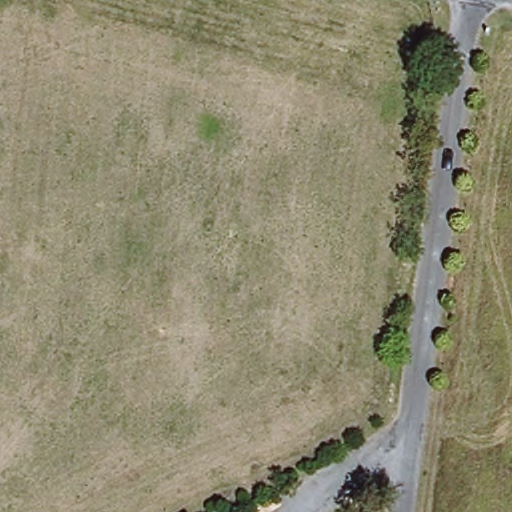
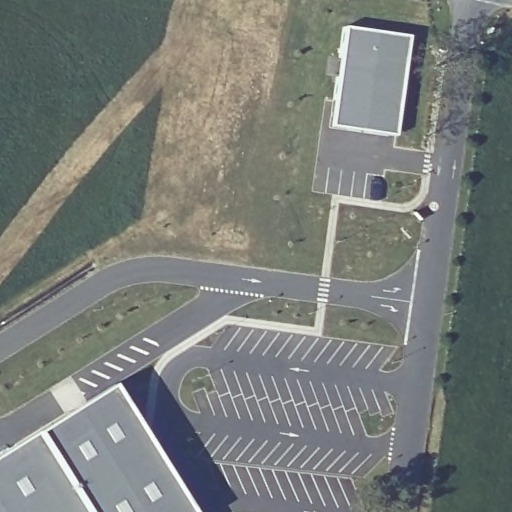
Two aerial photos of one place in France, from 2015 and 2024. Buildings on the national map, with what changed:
new [(346,32),(408,41),(392,140),(330,130),(346,32)]
new [(109,387),(186,512),(0,512),(0,455),(33,434),(109,387)]

